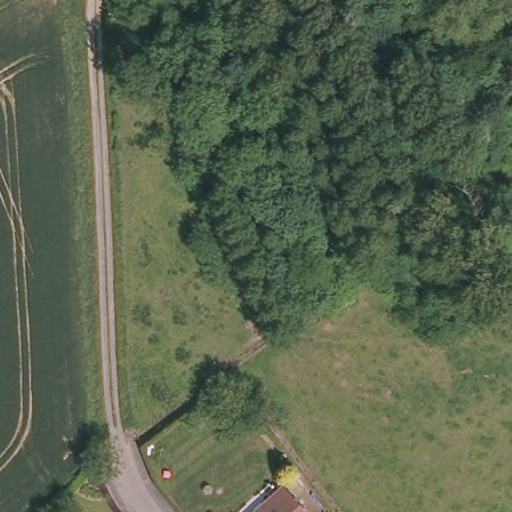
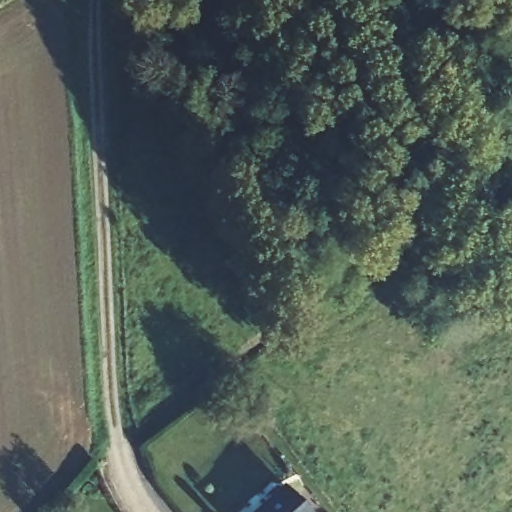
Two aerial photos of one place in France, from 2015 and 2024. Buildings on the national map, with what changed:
unchanged [(270,492),(281,481),(309,512),(248,512),(270,492)]

